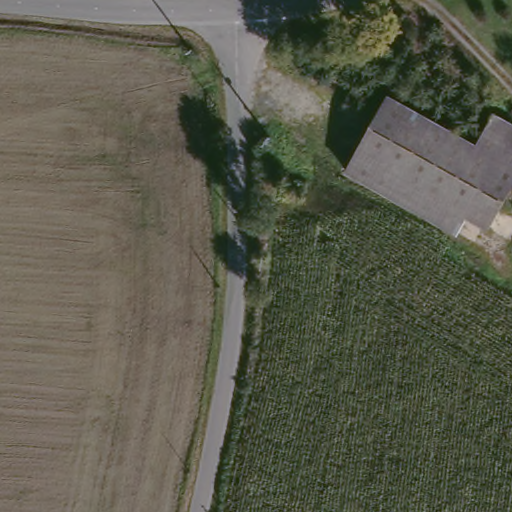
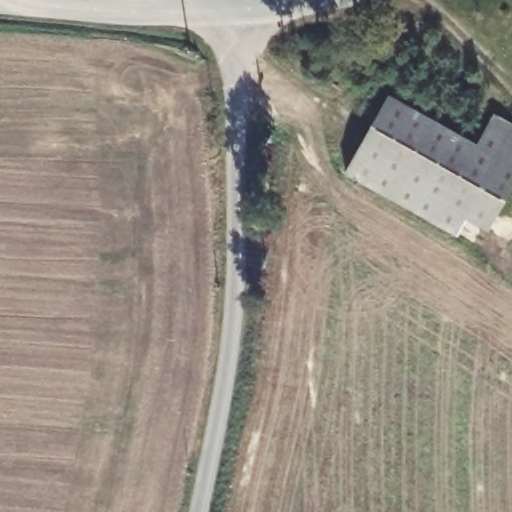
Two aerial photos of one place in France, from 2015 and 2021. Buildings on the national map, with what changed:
unchanged [(482,143),(502,109),(512,115),(512,193),(494,223),(469,210),(460,224),(355,162),(395,95),(482,143)]

